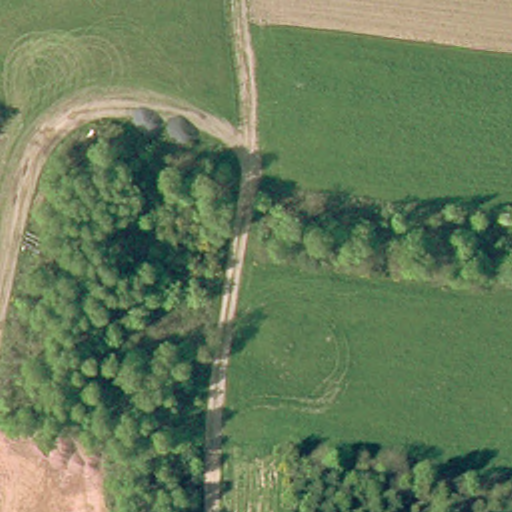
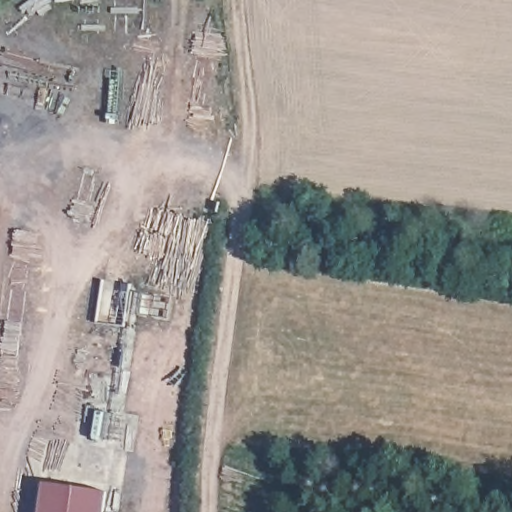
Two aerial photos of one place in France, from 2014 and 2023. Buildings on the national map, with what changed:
new [(102,512),(38,512),(42,480),(105,488),(102,512)]

